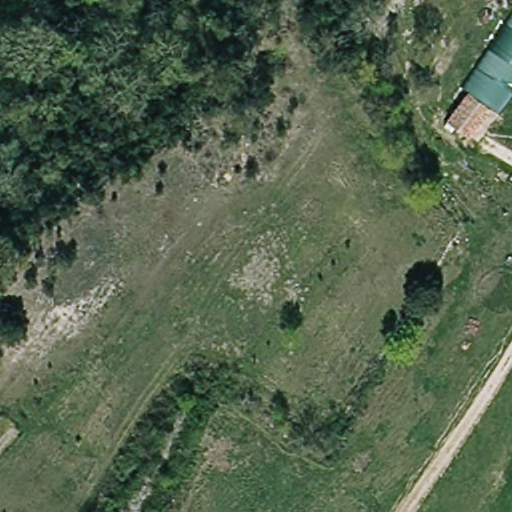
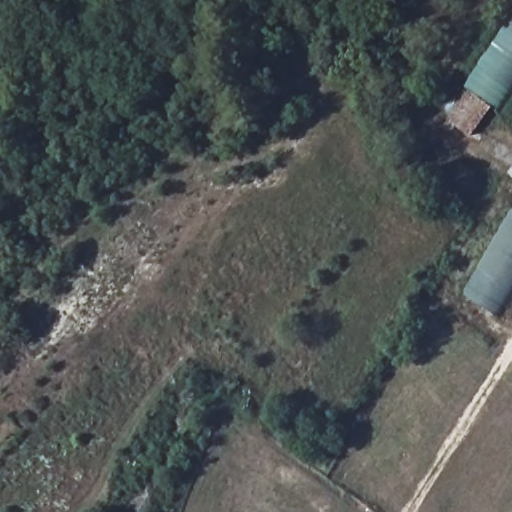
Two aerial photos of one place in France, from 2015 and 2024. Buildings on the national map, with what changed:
unchanged [(512,21),(512,102),(502,116),(465,89),(512,21)]
new [(470,138),(448,120),(469,92),(491,109),(470,138)]
new [(460,296),(511,210),(512,211),(512,299),(500,320),(460,296)]

